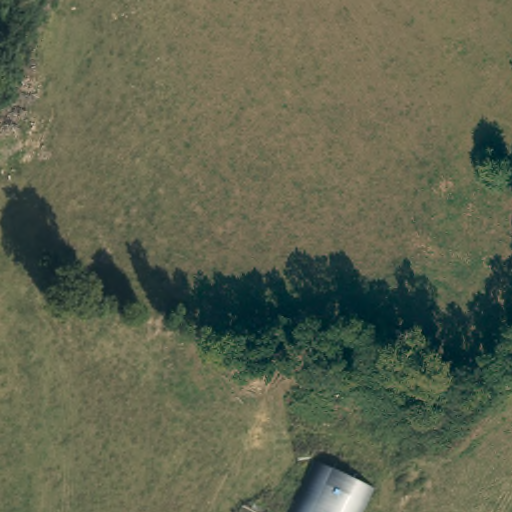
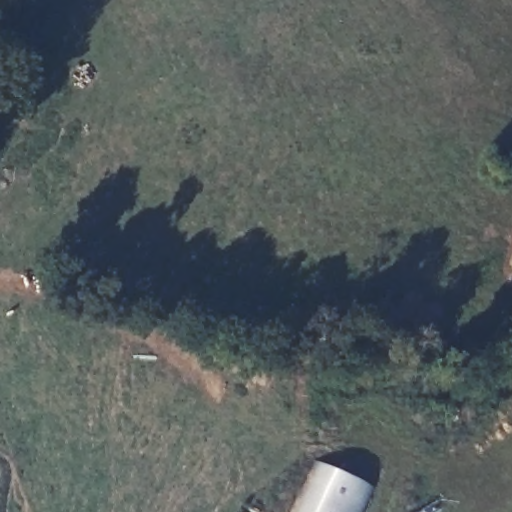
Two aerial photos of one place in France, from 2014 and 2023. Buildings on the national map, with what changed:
unchanged [(310,467),(368,495),(360,512),(289,512),(310,467)]

